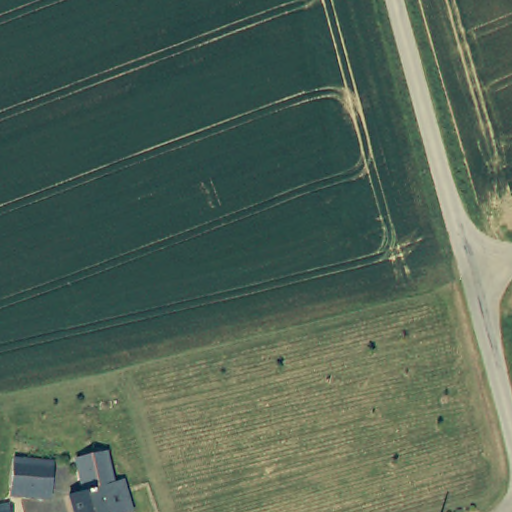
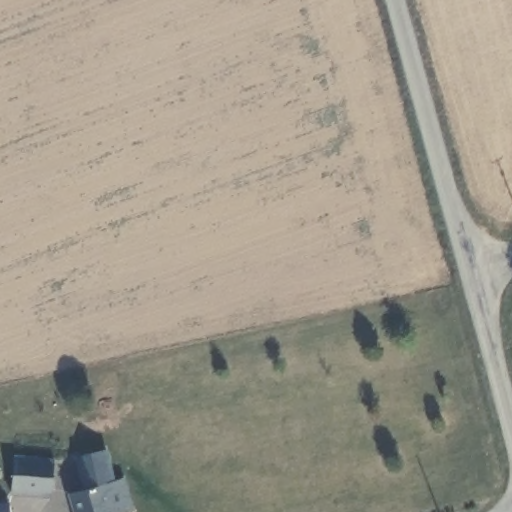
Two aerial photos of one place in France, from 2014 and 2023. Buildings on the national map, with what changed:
unchanged [(82,491),(74,458),(95,452),(104,450),(112,482),(122,478),(130,512),(73,512),(68,495),(82,491)]
unchanged [(44,497),(5,497),(8,457),(46,458),(44,497)]
unchanged [(5,512),(0,512),(0,506),(4,505),(5,512)]

